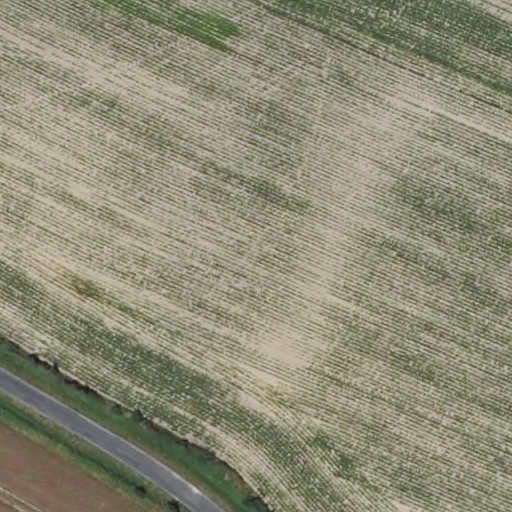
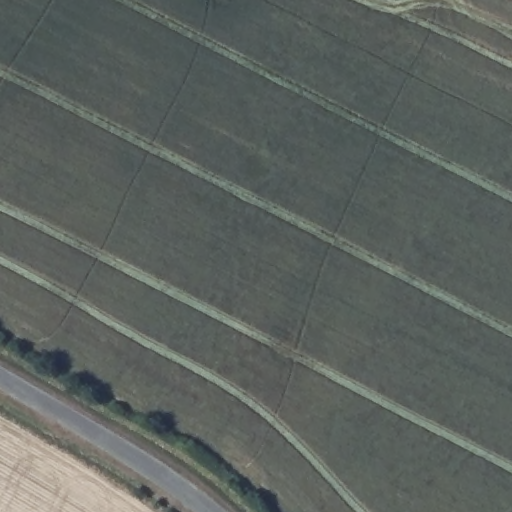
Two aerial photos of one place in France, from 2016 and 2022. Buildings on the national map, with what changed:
[]

